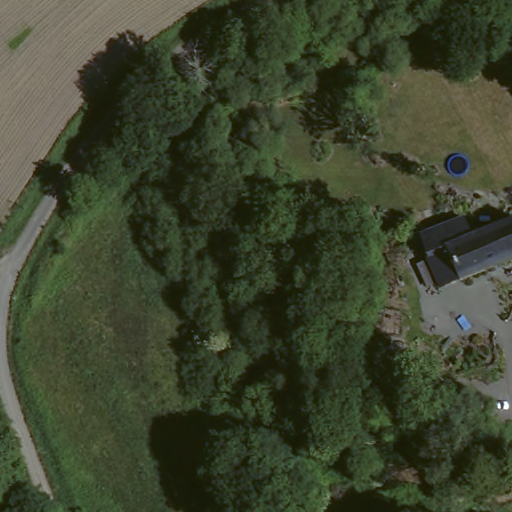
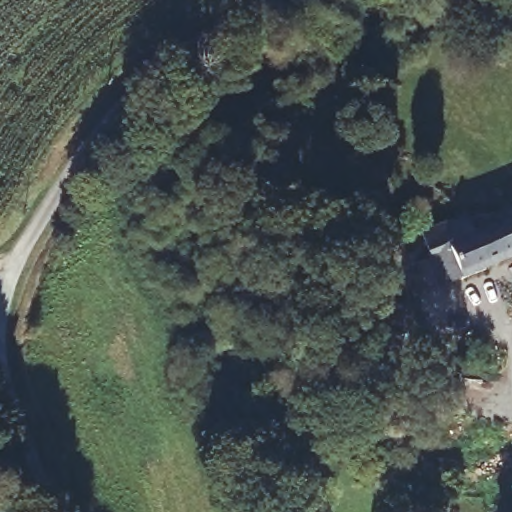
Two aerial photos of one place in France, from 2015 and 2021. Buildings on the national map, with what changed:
unchanged [(466,217),(475,235),(512,220),(512,262),(446,288),(444,284),(430,243),(425,233),(466,217)]

